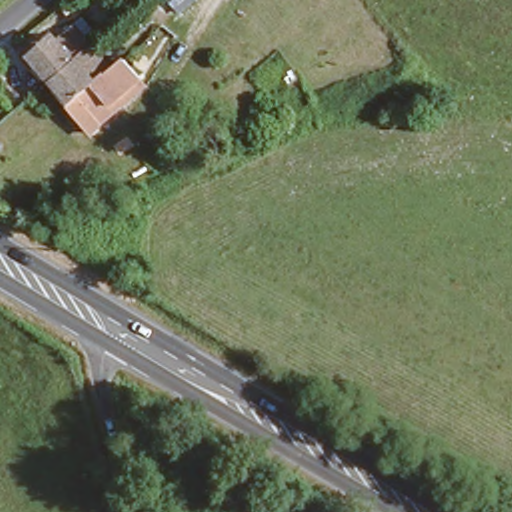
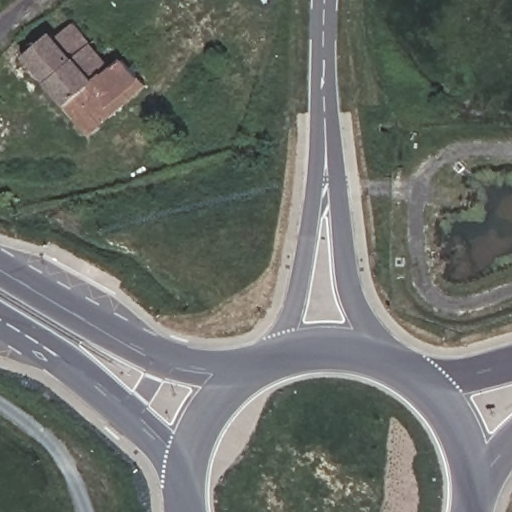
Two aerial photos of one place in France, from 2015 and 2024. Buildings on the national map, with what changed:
unchanged [(67,14),(89,37),(41,77),(20,55),(67,14)]
unchanged [(89,37),(137,86),(88,129),(41,77),(89,37)]

